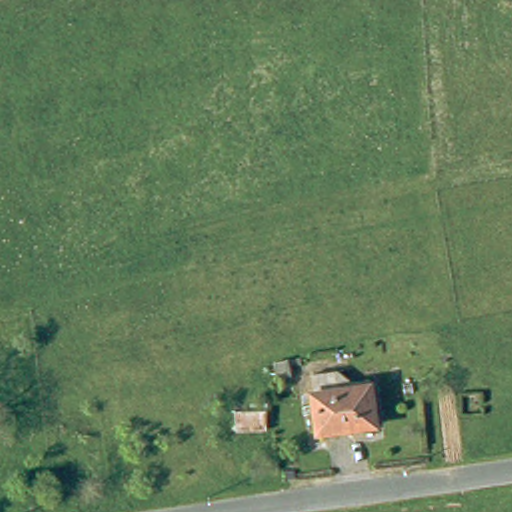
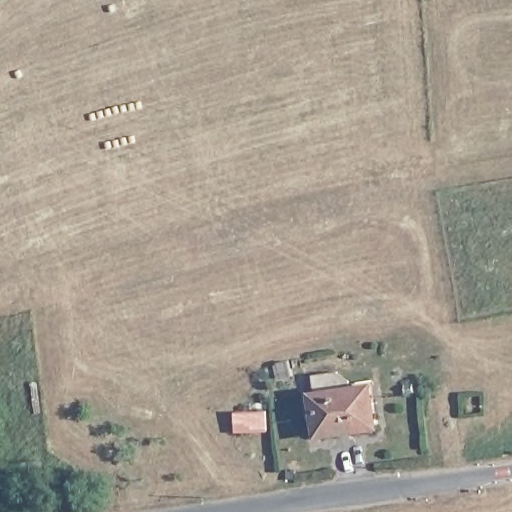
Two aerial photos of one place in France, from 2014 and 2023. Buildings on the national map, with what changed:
unchanged [(371,393),(379,437),(324,445),(314,389),(338,385),(357,394),(371,393)]

